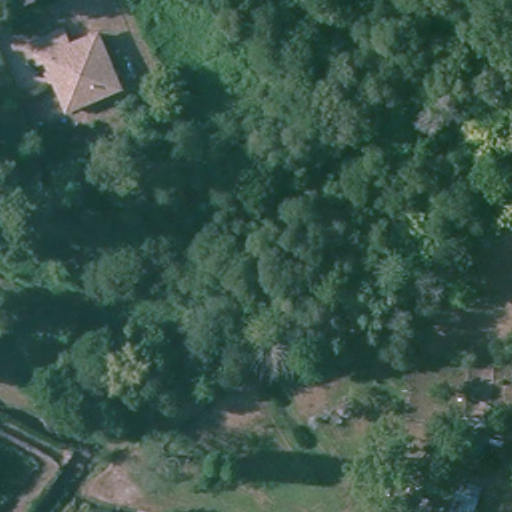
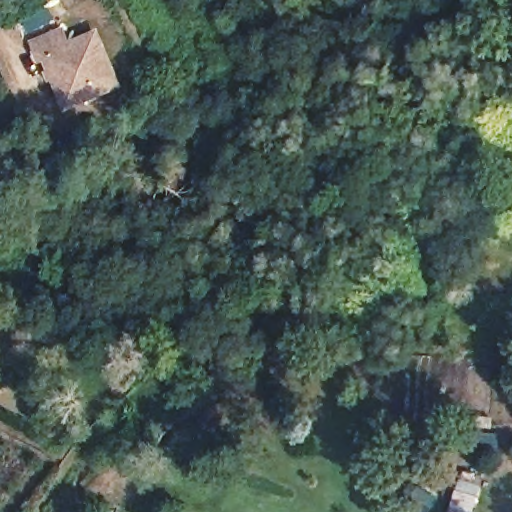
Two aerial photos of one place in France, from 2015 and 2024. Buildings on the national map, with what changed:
unchanged [(46,58),(41,60),(34,45),(60,34),(66,49),(95,36),(117,87),(82,101),(68,108),(62,94),(46,58)]

